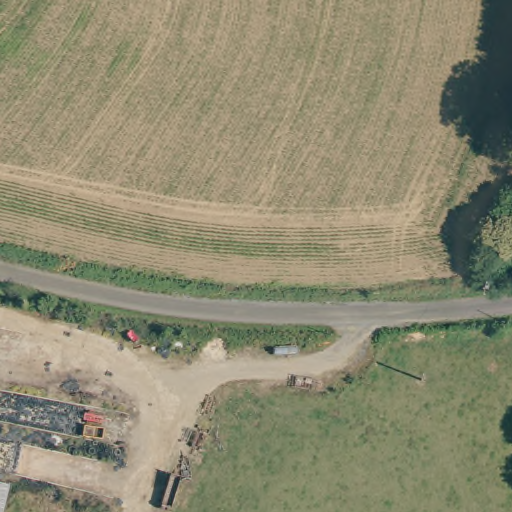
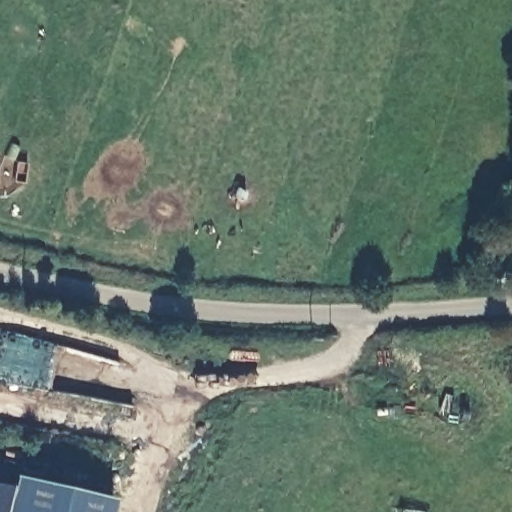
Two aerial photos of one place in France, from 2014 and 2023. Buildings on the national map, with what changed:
new [(110,512),(6,512),(12,486),(15,477),(113,500),(110,512)]
unchanged [(6,512),(0,512),(0,484),(12,486),(6,512)]

